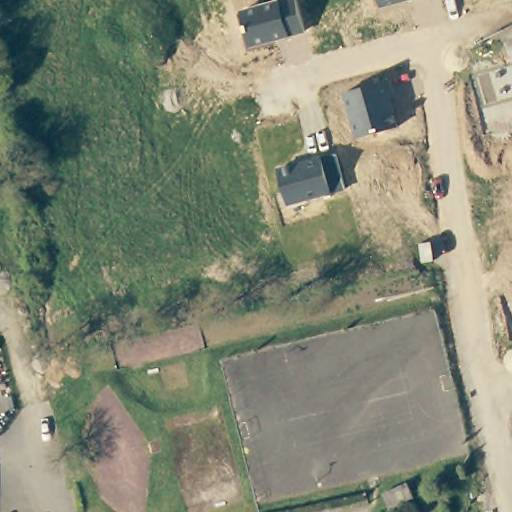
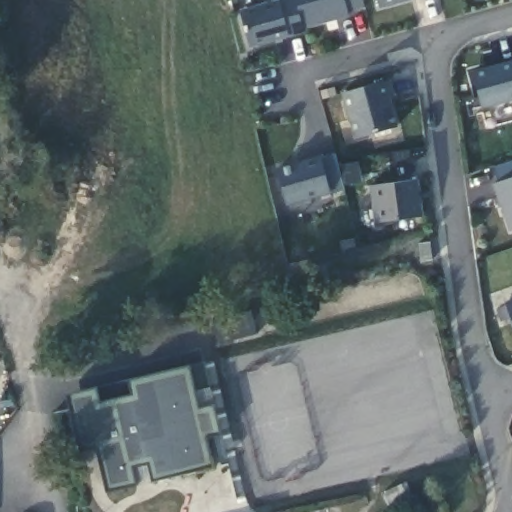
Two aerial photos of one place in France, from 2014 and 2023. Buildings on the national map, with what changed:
unchanged [(237,12),(283,0),(296,0),(305,33),(248,49),(237,12)]
new [(296,0),(363,0),(365,9),(348,13),(350,21),(305,33),(296,0)]
unchanged [(377,0),(406,0),(380,8),(377,0)]
unchanged [(471,71),(512,60),(512,101),(482,109),(471,71)]
unchanged [(342,94),(386,82),(400,128),(356,138),(342,94)]
unchanged [(276,167),(335,153),(345,189),(287,205),(276,167)]
new [(491,183),(498,180),(493,166),(512,160),(512,229),(508,231),(491,183)]
unchanged [(419,180),(423,217),(375,223),(370,186),(419,180)]
unchanged [(512,299),(512,326),(504,302),(512,299)]
new [(95,387),(99,402),(132,395),(129,380),(189,365),(190,368),(204,363),(220,433),(206,436),(214,467),(106,492),(96,449),(79,454),(65,394),(95,387)]
unchanged [(415,496),(391,506),(384,489),(407,479),(415,496)]

